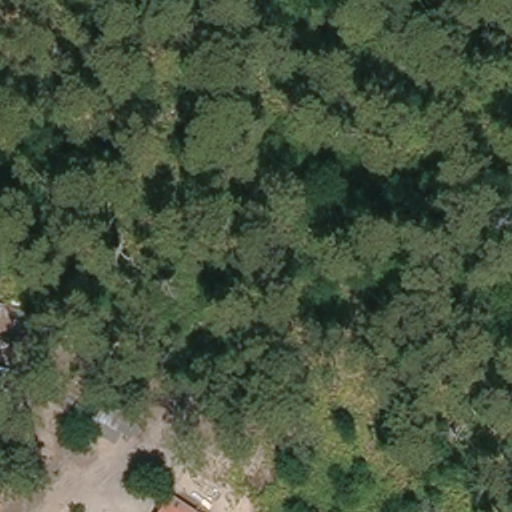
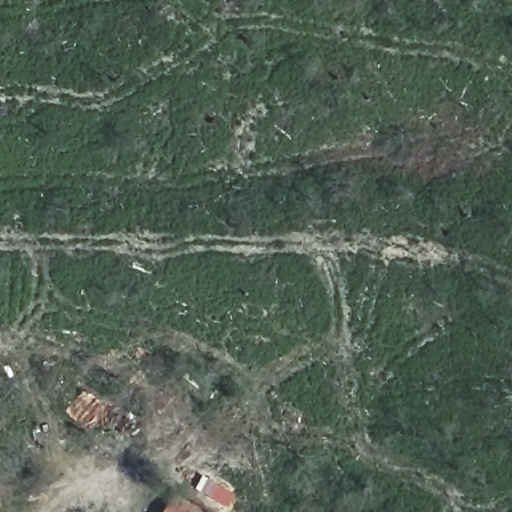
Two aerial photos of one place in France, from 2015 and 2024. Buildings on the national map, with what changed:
unchanged [(170,493),(202,512),(158,512),(170,493)]

